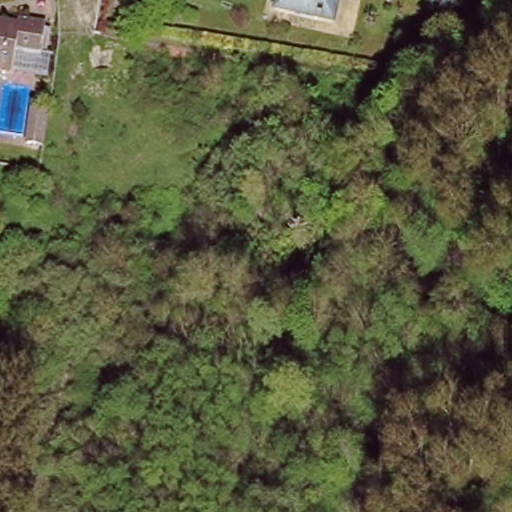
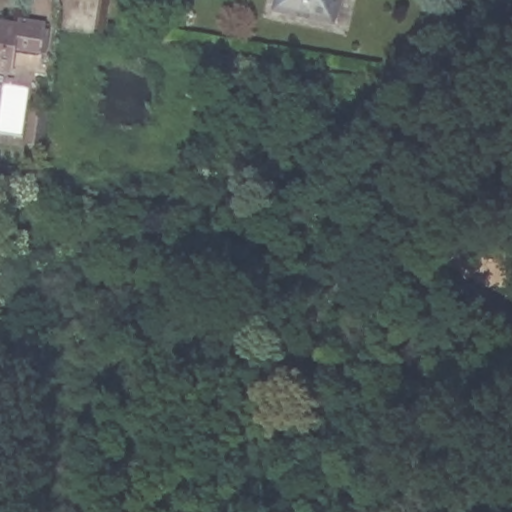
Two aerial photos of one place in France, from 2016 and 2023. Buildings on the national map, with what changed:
unchanged [(336,0),(334,19),(278,11),(279,0),(336,0)]
unchanged [(36,26),(39,21),(51,22),(51,28),(49,52),(21,48),(0,45),(0,22),(36,26)]
unchanged [(17,73),(0,71),(0,45),(21,48),(17,73)]
unchanged [(32,139),(35,104),(50,105),(47,140),(32,139)]

